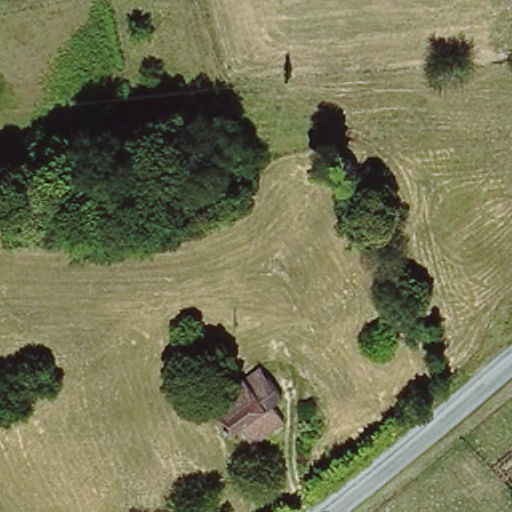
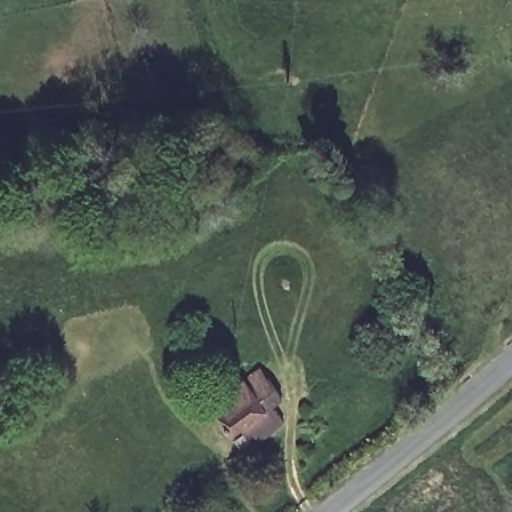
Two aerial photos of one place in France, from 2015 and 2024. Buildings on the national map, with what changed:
unchanged [(249,434),(240,424),(233,429),(222,408),(240,396),(232,385),(250,372),(264,364),(284,393),(277,397),(285,408),(249,434)]

